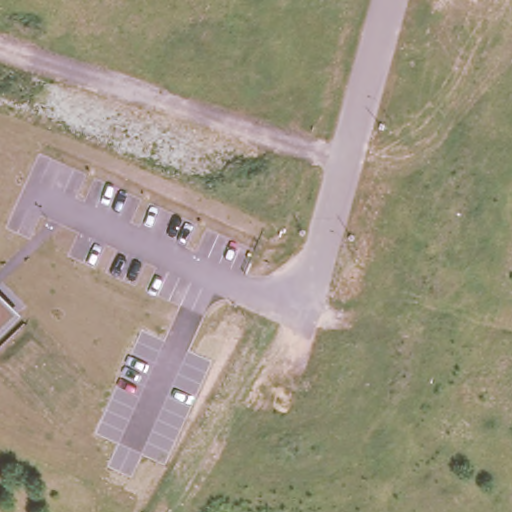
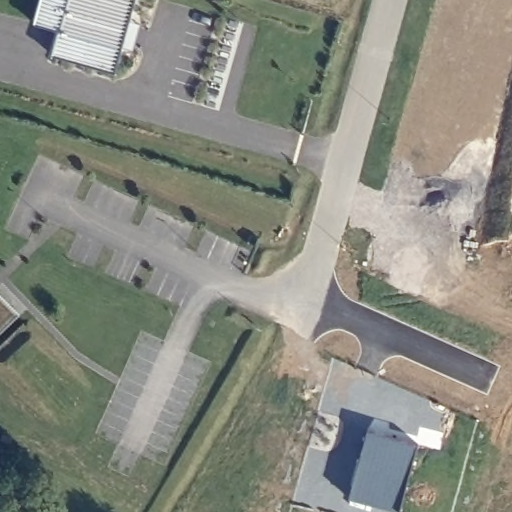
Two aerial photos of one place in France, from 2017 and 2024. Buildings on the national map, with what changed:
new [(27,50),(41,0),(131,0),(119,46),(112,72),(27,50)]
new [(137,23),(130,50),(119,46),(126,20),(137,23)]
unchanged [(21,313),(0,334),(0,292),(21,313)]
new [(400,512),(349,498),(367,430),(419,443),(400,512)]

